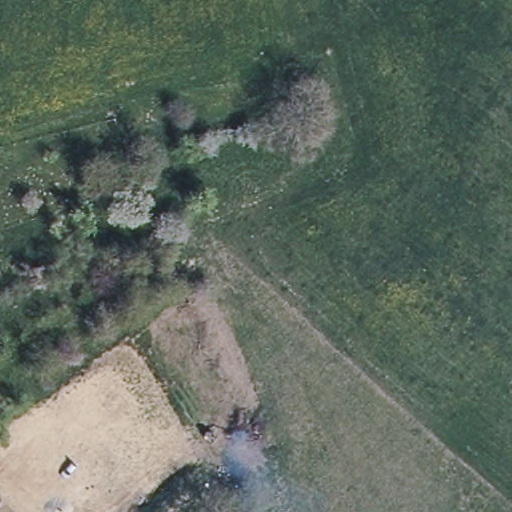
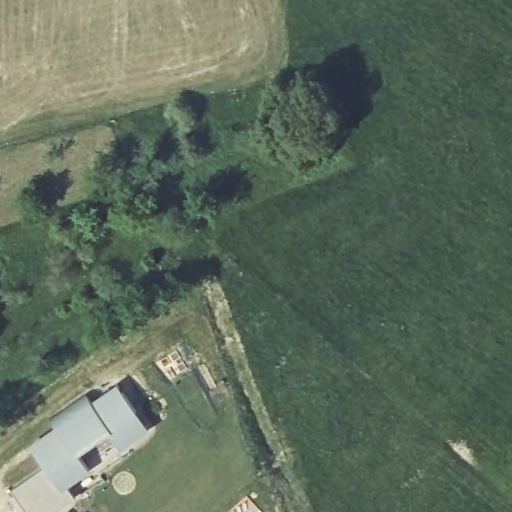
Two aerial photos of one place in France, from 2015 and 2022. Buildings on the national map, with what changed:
new [(150,429),(120,449),(111,436),(81,457),(90,471),(68,487),(75,497),(54,512),(26,512),(11,490),(43,467),(28,443),(55,426),(49,417),(85,391),(90,398),(116,382),(150,429)]

